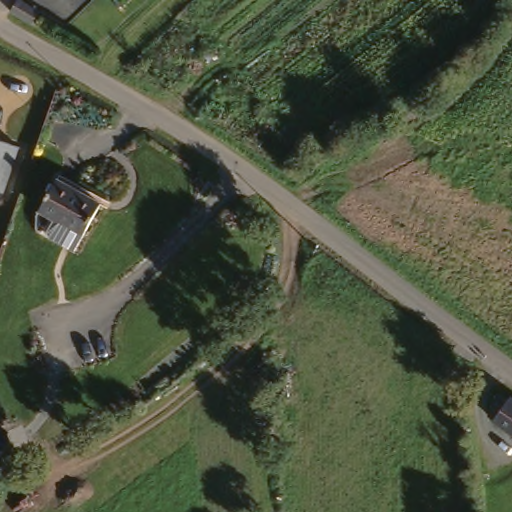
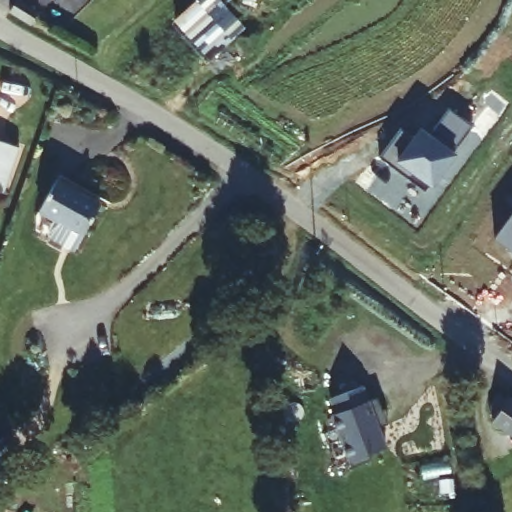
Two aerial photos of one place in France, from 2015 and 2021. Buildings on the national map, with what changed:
unchanged [(10,12),(18,0),(19,0),(39,13),(31,25),(10,12)]
new [(412,139),(418,129),(427,135),(431,130),(449,109),(473,126),(454,152),(458,155),(433,189),(429,186),(425,192),(379,159),(400,130),(412,139)]
unchanged [(0,192),(0,141),(20,147),(3,193),(0,192)]
unchanged [(39,211),(57,180),(101,205),(83,236),(39,211)]
new [(365,385),(371,401),(378,399),(388,425),(381,427),(388,448),(348,463),(330,414),(335,412),(331,399),(365,385)]
unchanged [(491,405),(493,402),(498,395),(504,399),(508,401),(510,399),(510,398),(512,400),(512,435),(506,430),(494,421),(499,414),(489,407),(491,405)]

